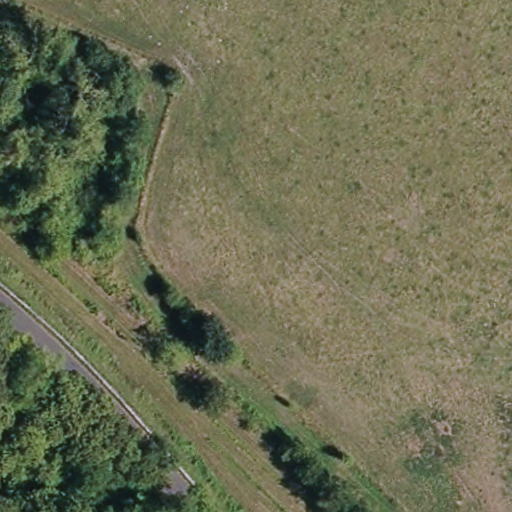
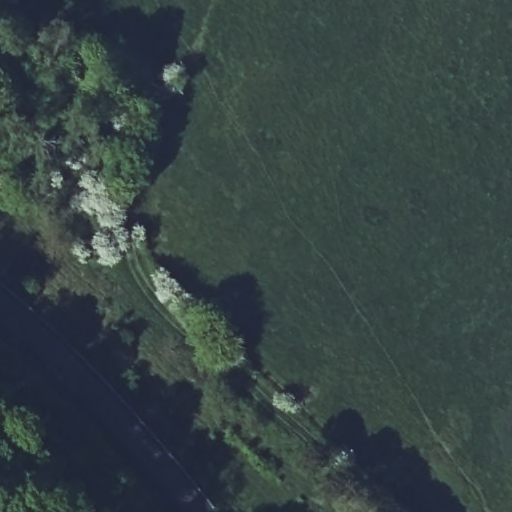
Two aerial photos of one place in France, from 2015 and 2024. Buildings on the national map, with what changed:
unchanged [(17,122),(28,130),(24,138),(12,129),(17,122)]

